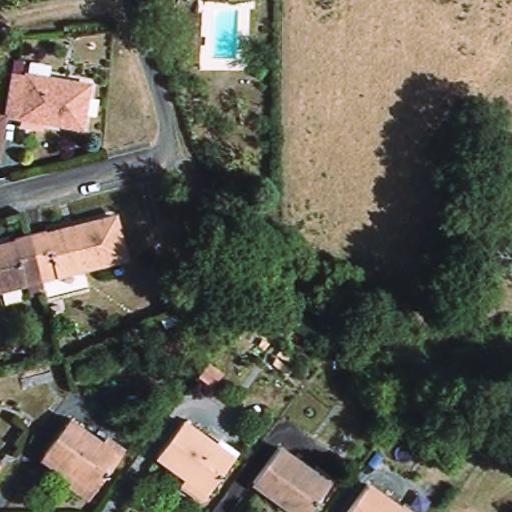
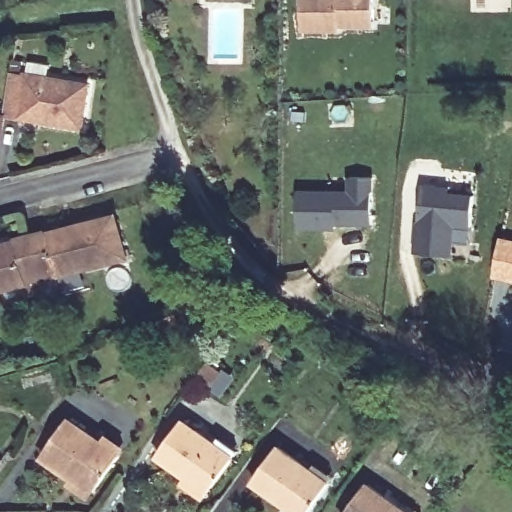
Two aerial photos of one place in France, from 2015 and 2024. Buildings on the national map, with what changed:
new [(374,26),(340,25),(340,30),(302,30),(303,0),(374,0),(374,26)]
unchanged [(20,120),(4,117),(12,72),(13,61),(22,62),(20,74),(89,85),(82,127),(44,121),(21,118),(20,120)]
unchanged [(0,144),(0,117),(4,117),(0,144)]
new [(320,226),(297,226),(297,190),(350,191),(350,177),(350,175),(371,175),(370,222),(334,221),(335,226),(320,226)]
new [(438,188),(450,189),(450,193),(475,196),(472,227),(454,224),(450,257),(416,253),(422,186),(438,188)]
unchanged [(126,258),(42,280),(30,235),(47,231),(47,233),(73,227),(115,216),(126,258)]
unchanged [(35,297),(31,282),(0,290),(0,246),(15,242),(14,239),(30,235),(42,280),(46,294),(35,297)]
new [(500,235),(512,238),(512,281),(492,276),(500,235)]
unchanged [(212,384),(200,376),(209,364),(220,372),(212,384)]
unchanged [(409,424),(399,416),(406,405),(417,413),(409,424)]
unchanged [(71,480),(74,476),(44,454),(69,419),(102,442),(107,436),(124,449),(120,455),(97,486),(92,494),(71,480)]
unchanged [(182,484),(187,477),(157,455),(182,421),(234,458),(211,489),(203,499),(182,484)]
unchanged [(251,483),(277,449),(310,472),(314,466),(332,479),(327,485),(309,512),(291,512),(283,506),(251,483)]
unchanged [(406,512),(347,512),(367,484),(406,512)]

